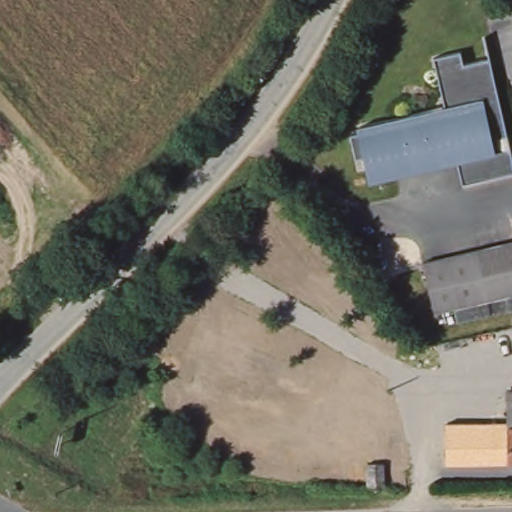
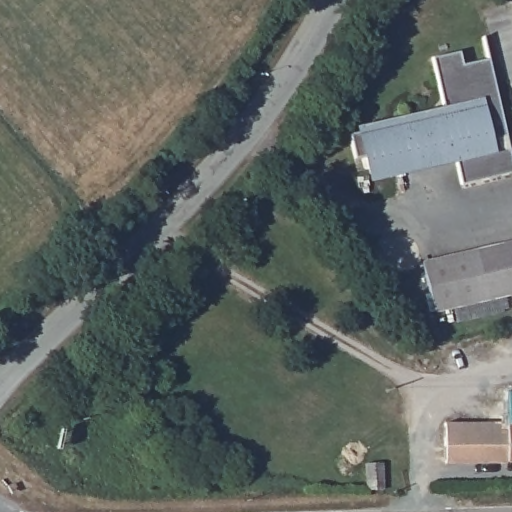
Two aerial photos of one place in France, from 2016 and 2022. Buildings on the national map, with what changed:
unchanged [(361,122),(445,102),(433,54),(460,47),(464,60),(489,55),(512,151),(512,169),(463,180),(457,154),(373,174),(368,151),(355,154),(350,130),(362,127),(361,122)]
unchanged [(512,296),(435,314),(423,264),(512,243),(512,296)]
unchanged [(441,423),(502,421),(502,390),(512,391),(512,462),(442,465),(441,423)]
unchanged [(367,463),(385,464),(385,490),(367,490),(367,463)]

